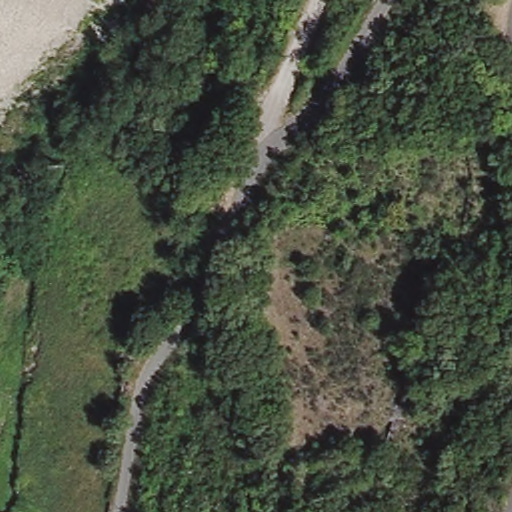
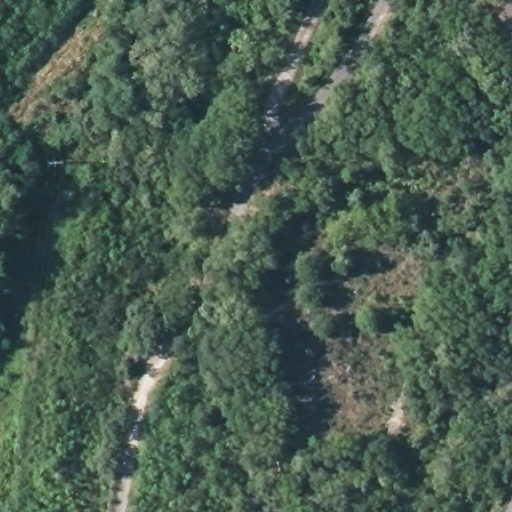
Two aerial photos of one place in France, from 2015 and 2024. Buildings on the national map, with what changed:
unchanged [(6,512),(13,511),(13,512),(6,512)]

